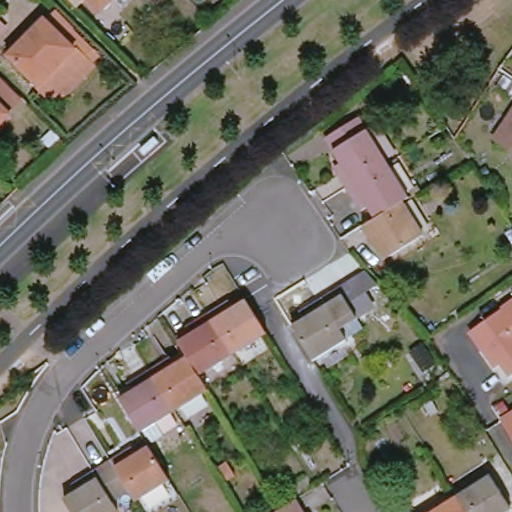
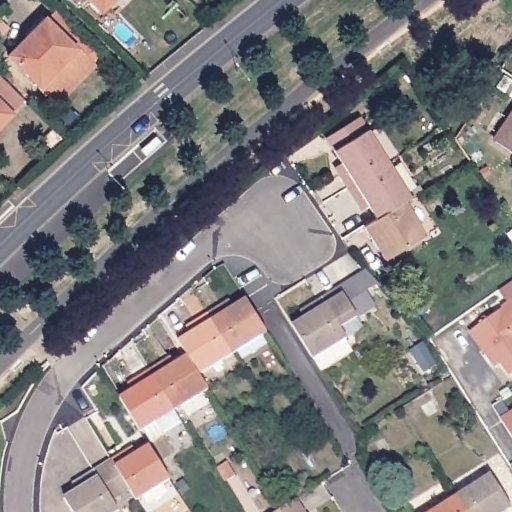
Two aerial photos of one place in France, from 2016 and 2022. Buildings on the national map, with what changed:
unchanged [(99,16),(83,0),(115,0),(99,16)]
unchanged [(46,16),(80,49),(97,67),(58,108),(38,92),(5,59),(46,16)]
unchanged [(0,123),(0,77),(17,94),(21,98),(6,113),(8,114),(0,123)]
unchanged [(512,115),(512,151),(495,141),(512,115)]
unchanged [(350,189),(338,171),(346,166),(336,151),(369,130),(390,164),(350,189)]
unchanged [(390,164),(410,197),(403,201),(377,217),(366,201),(360,204),(350,189),(390,164)]
unchanged [(377,217),(403,201),(425,234),(386,259),(365,225),(377,217)]
unchanged [(299,330),(315,318),(312,313),(345,293),(363,321),(346,332),(351,340),(320,363),(299,330)]
unchanged [(497,364),(492,367),(467,332),(512,299),(512,370),(505,375),(497,364)]
unchanged [(209,320),(227,308),(231,314),(247,305),(267,337),(265,338),(233,358),(209,320)]
unchanged [(188,363),(178,347),(196,335),(193,328),(209,320),(233,358),(198,379),(188,363)]
unchanged [(150,376),(167,365),(171,372),(188,363),(198,379),(207,394),(175,415),(150,376)]
unchanged [(120,405),(136,393),(133,387),(150,376),(175,415),(140,436),(120,405)]
unchanged [(512,410),(512,438),(498,418),(512,410)]
unchanged [(111,466),(130,454),(133,460),(149,451),(170,484),(136,505),(111,466)]
unchanged [(124,512),(69,512),(63,503),(81,492),(78,487),(111,466),(136,505),(124,512)]
unchanged [(492,475),(512,505),(512,507),(504,512),(468,512),(458,497),(492,475)]
unchanged [(433,512),(458,497),(468,512),(433,512)]
unchanged [(296,499),(304,512),(276,512),(282,508),(296,499)]

